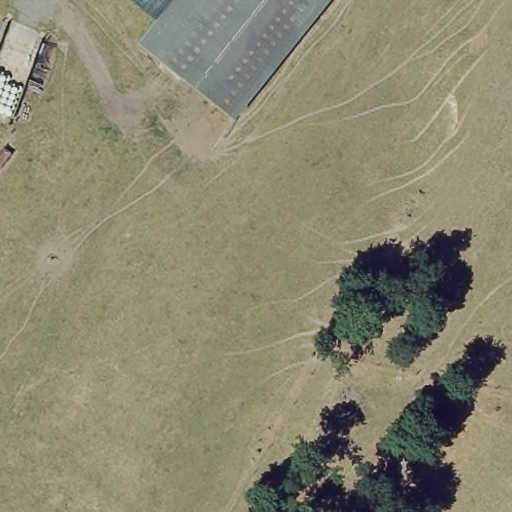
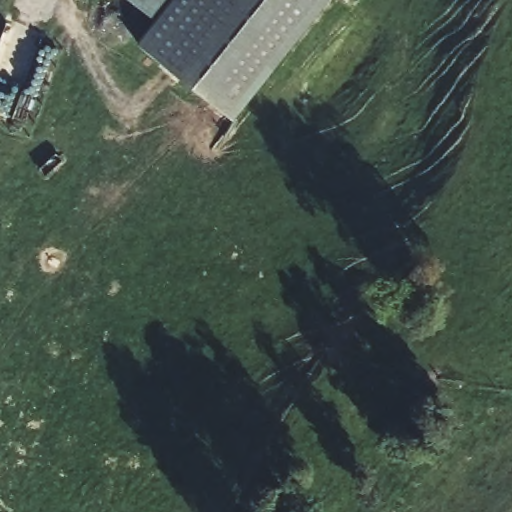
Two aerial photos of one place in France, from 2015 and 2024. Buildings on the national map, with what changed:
unchanged [(331,0),(231,119),(194,87),(139,40),(160,15),(141,0),(331,0)]

